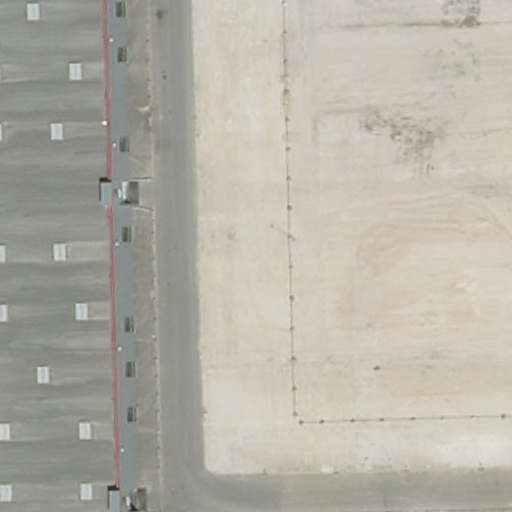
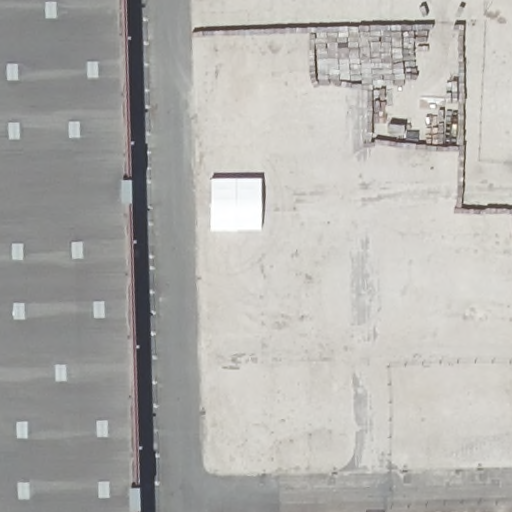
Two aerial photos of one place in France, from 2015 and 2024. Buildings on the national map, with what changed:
unchanged [(138,512),(0,512),(0,0),(125,0),(138,512)]
new [(211,179),(261,179),(261,230),(211,229),(211,179)]

